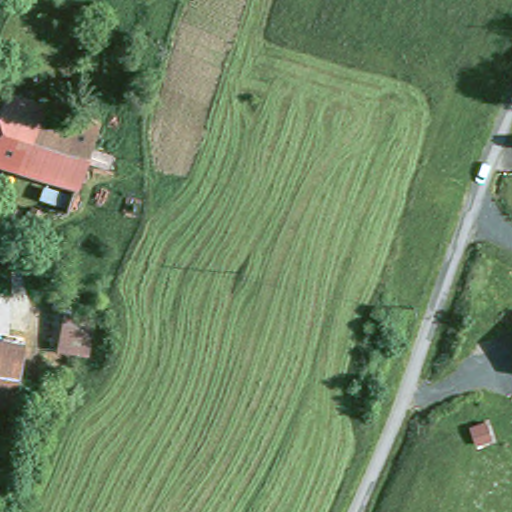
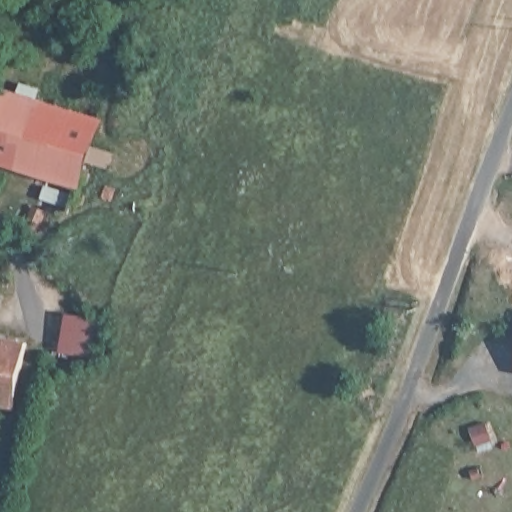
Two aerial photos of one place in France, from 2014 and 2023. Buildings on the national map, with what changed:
unchanged [(0,151),(0,102),(3,103),(10,82),(77,103),(54,168),(0,151)]
unchanged [(82,105),(102,111),(71,216),(41,207),(54,168),(77,103),(82,105)]
unchanged [(89,360),(59,354),(65,318),(98,323),(89,360)]
unchanged [(18,400),(0,396),(0,331),(29,337),(18,400)]

